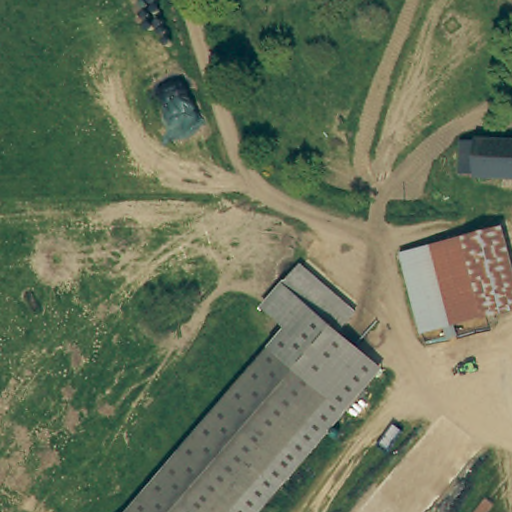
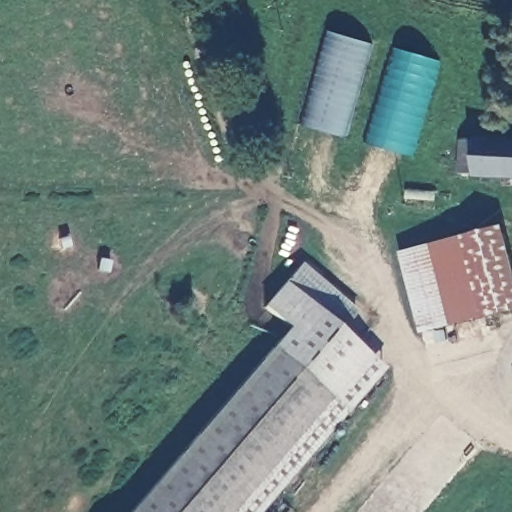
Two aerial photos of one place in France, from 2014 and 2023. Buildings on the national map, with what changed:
new [(396,153),(302,127),(330,31),(425,58),(396,153)]
unchanged [(477,176),(479,141),(479,138),(512,139),(512,177),(477,176)]
unchanged [(507,225),(512,241),(512,310),(425,330),(402,251),(507,225)]
unchanged [(265,305),(305,257),(361,305),(342,327),(322,311),(302,336),(291,327),(265,305)]
unchanged [(262,512),(136,512),(291,327),(302,336),(322,311),(342,327),(386,364),(262,512)]

